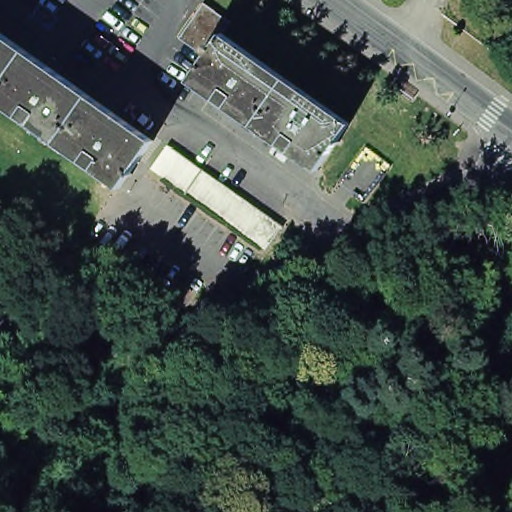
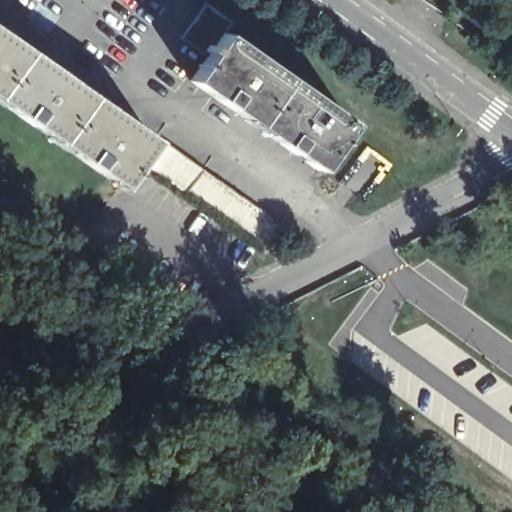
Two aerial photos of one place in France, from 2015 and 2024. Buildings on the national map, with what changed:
unchanged [(202,59),(177,40),(202,6),(227,24),(220,35),(202,59)]
unchanged [(149,151),(127,182),(0,92),(0,20),(162,133),(149,151)]
unchanged [(347,125),(312,173),(185,83),(202,59),(220,35),(347,125)]
unchanged [(237,231),(225,223),(214,214),(202,206),(190,198),(179,190),(166,180),(155,172),(144,164),(159,142),(170,150),(182,158),(195,167),(207,175),(217,183),(230,192),(242,200),(253,208),(265,216),(277,224),(260,248),(247,239),(237,231)]

